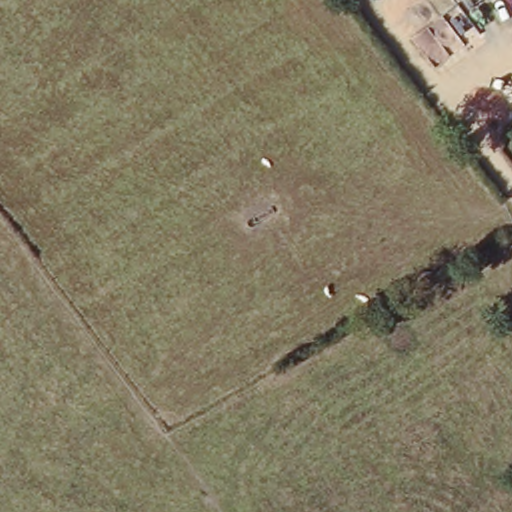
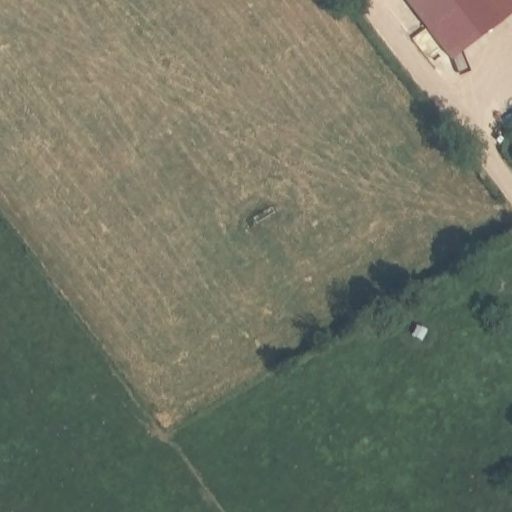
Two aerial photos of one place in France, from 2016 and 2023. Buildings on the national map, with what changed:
new [(512,7),(512,12),(450,58),(406,0),(512,0),(512,3),(510,4),(512,7)]
demolished [(512,8),(512,24),(470,54),(440,13),(458,0),(512,0),(512,2),(509,4),(512,8)]

